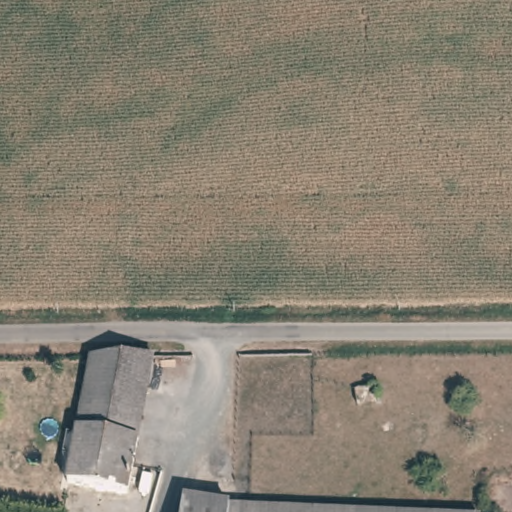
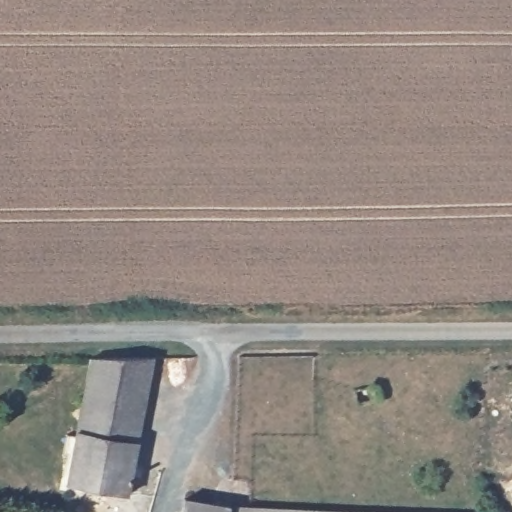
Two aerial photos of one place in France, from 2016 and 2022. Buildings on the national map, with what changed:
unchanged [(136,442),(76,431),(80,407),(90,358),(151,357),(150,367),(136,442)]
unchanged [(136,442),(127,495),(66,485),(76,431),(136,442)]
unchanged [(243,508),(242,512),(181,512),(183,500),(243,508)]
unchanged [(332,512),(242,512),(243,508),(332,512)]

